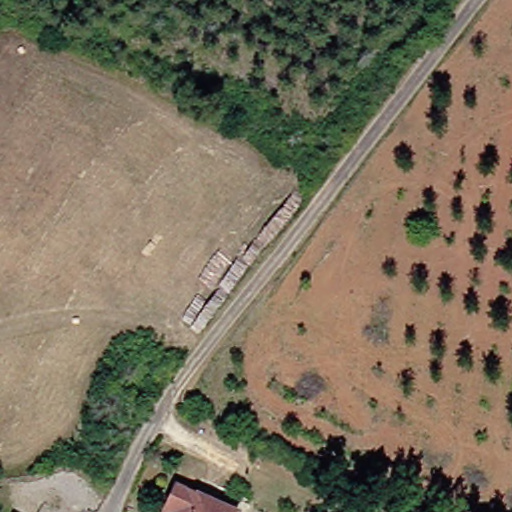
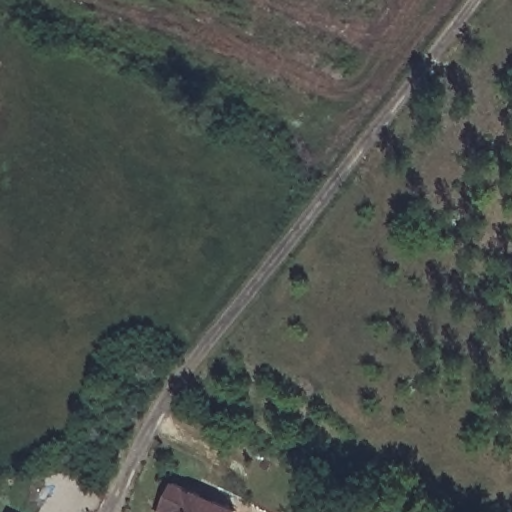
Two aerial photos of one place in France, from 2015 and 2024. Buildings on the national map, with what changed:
unchanged [(230,512),(154,512),(168,482),(230,512)]

